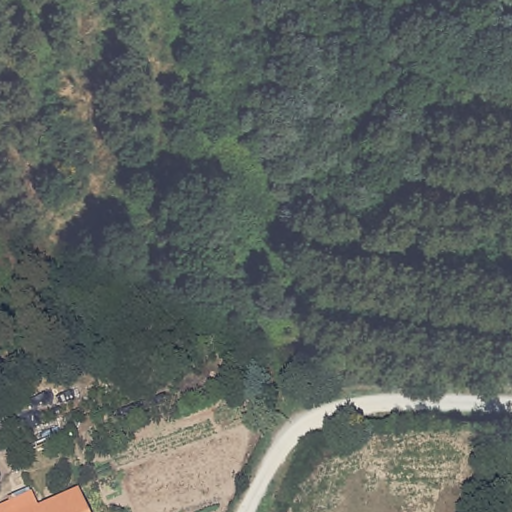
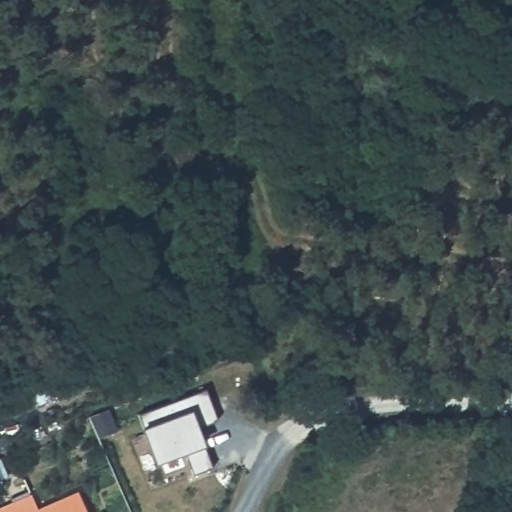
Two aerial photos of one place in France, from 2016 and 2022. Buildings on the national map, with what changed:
new [(154,453),(139,412),(207,386),(219,418),(199,425),(214,465),(194,473),(185,448),(156,459),(154,453)]
unchanged [(87,512),(34,512),(78,492),(87,512)]
unchanged [(23,512),(33,508),(34,512),(23,512)]

